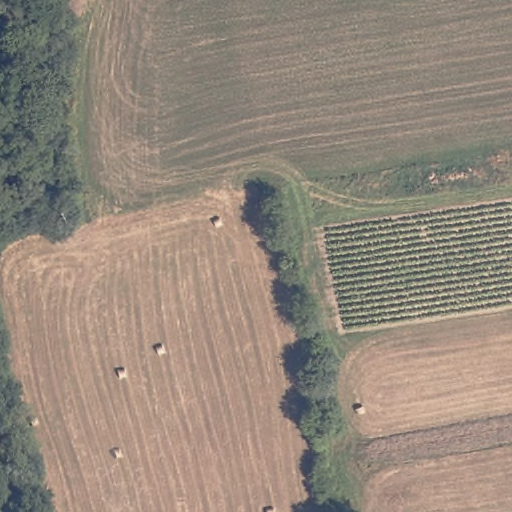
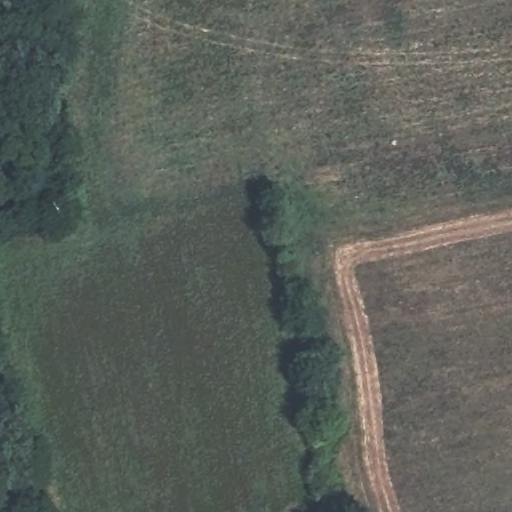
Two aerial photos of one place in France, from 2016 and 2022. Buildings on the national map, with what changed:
[]

